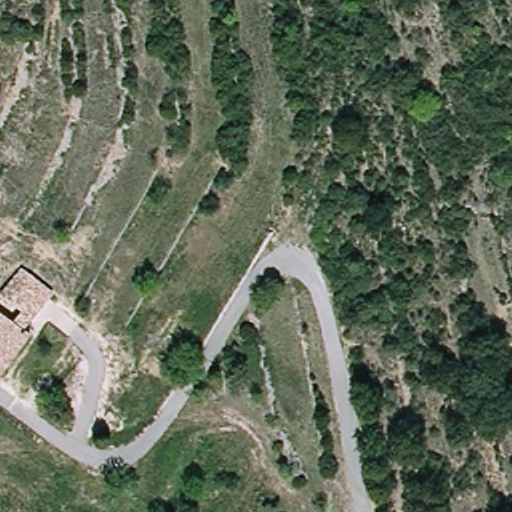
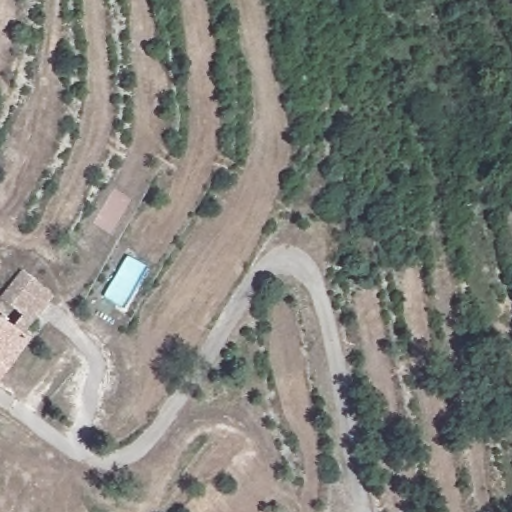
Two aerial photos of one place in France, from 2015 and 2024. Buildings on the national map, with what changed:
unchanged [(56,294),(29,326),(18,319),(22,313),(2,294),(23,269),(56,294)]
unchanged [(38,332),(5,384),(0,381),(0,307),(38,332)]

